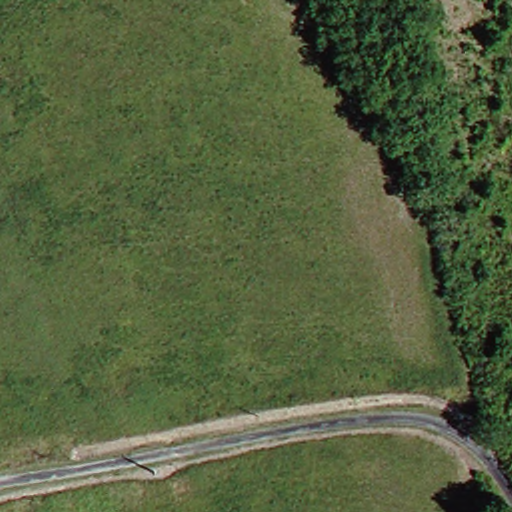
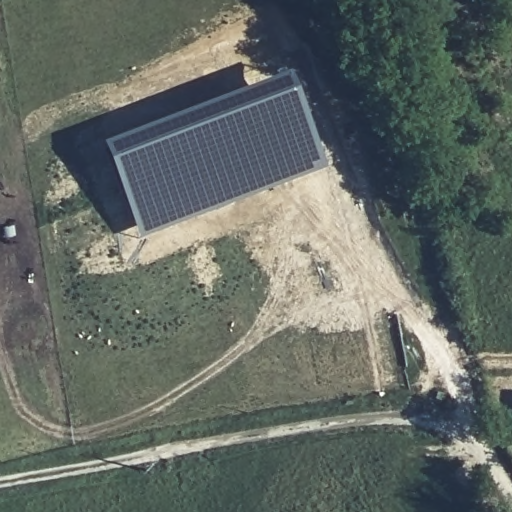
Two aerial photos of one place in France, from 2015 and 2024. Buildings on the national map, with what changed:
new [(325,168),(136,243),(100,148),(289,74),(325,168)]

